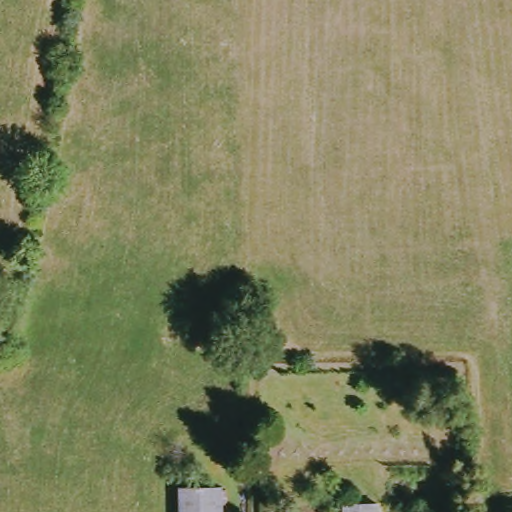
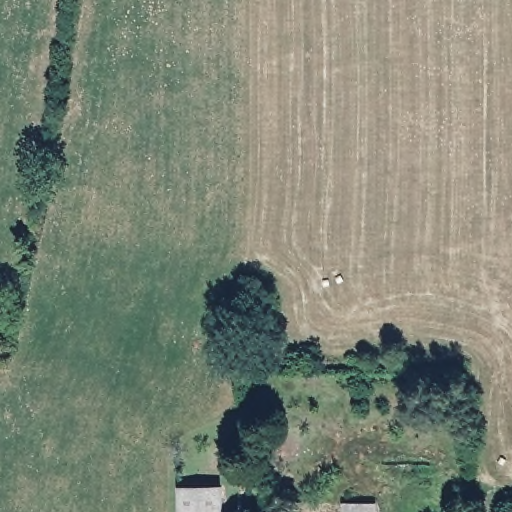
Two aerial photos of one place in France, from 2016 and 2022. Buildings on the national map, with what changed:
unchanged [(188,486),(228,486),(228,512),(188,512),(188,486)]
unchanged [(347,503),(380,502),(380,512),(347,512),(347,503)]

